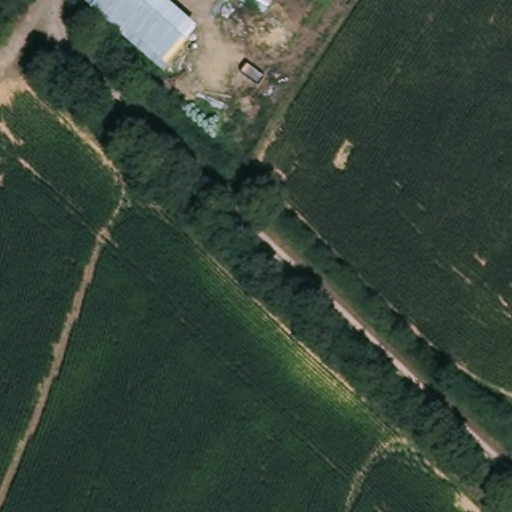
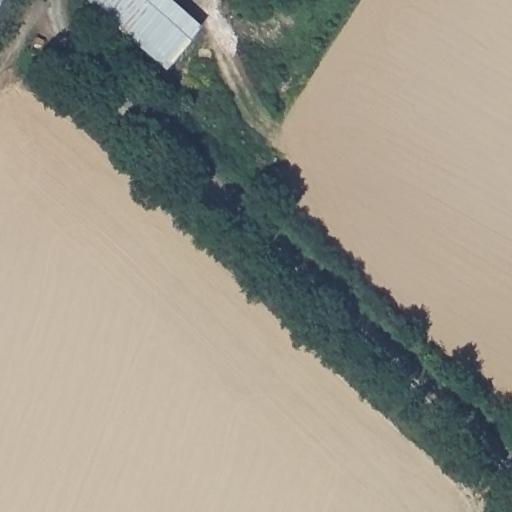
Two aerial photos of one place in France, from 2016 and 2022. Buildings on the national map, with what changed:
unchanged [(6,0),(0,9),(0,0),(6,0)]
unchanged [(170,0),(201,27),(166,70),(87,0),(170,0)]

